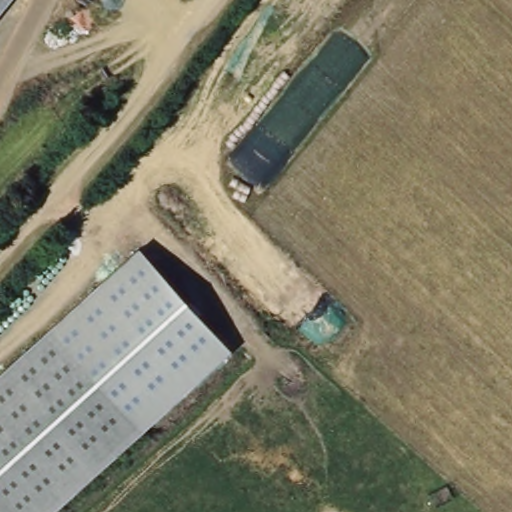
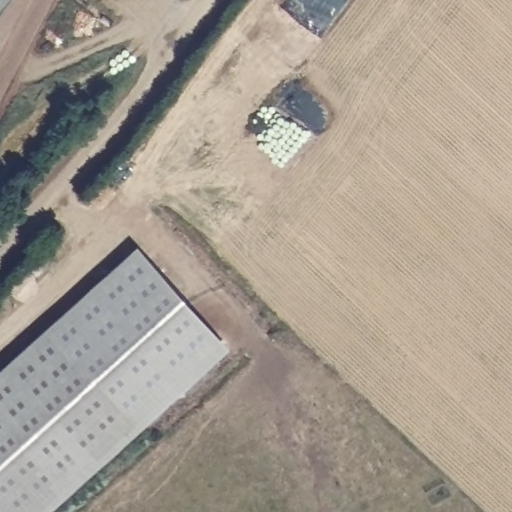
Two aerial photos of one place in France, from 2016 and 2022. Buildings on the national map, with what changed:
unchanged [(0,8),(0,0),(6,0),(0,8)]
unchanged [(139,248),(228,347),(141,426),(50,326),(139,248)]
unchanged [(141,426),(46,512),(0,512),(0,371),(50,326),(141,426)]

